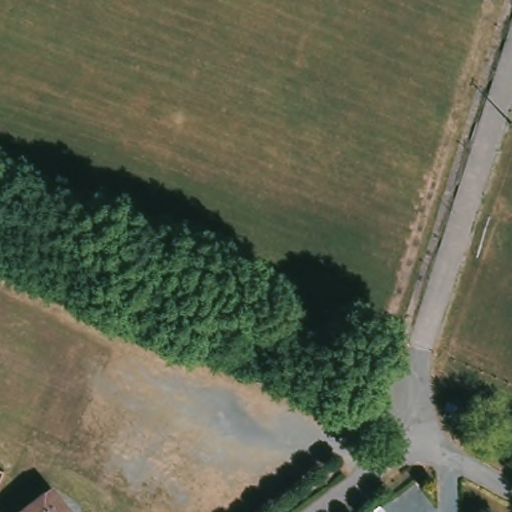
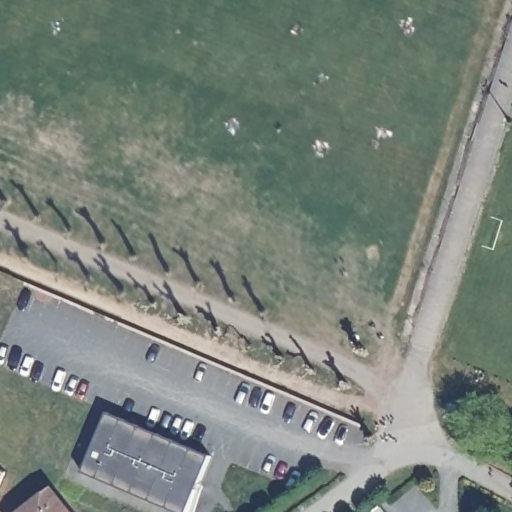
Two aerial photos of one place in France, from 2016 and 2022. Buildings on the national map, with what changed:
unchanged [(455,408),(453,416),(444,413),(446,405),(455,408)]
new [(210,457),(186,512),(171,512),(81,474),(106,414),(210,457)]
unchanged [(67,512),(21,512),(49,490),(67,512)]
new [(385,512),(374,512),(381,507),(385,512)]

